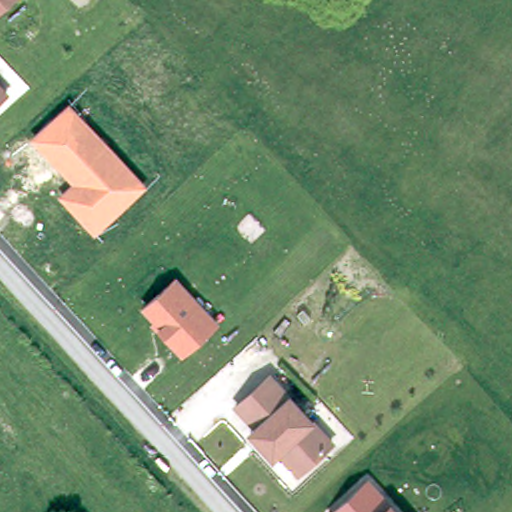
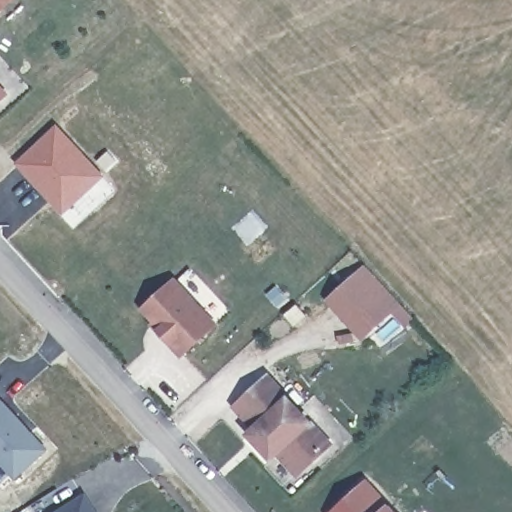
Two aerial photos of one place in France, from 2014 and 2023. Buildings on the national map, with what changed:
unchanged [(0,10),(0,0),(12,0),(0,10)]
unchanged [(0,105),(0,80),(13,94),(0,105)]
demolished [(144,183),(96,231),(61,196),(71,183),(33,137),(70,101),(144,183)]
new [(63,214),(15,161),(58,122),(106,175),(63,214)]
new [(364,339),(327,298),(366,263),(416,319),(407,326),(394,312),(364,339)]
unchanged [(221,321),(183,355),(177,346),(172,349),(156,329),(158,327),(143,305),(178,274),(221,321)]
unchanged [(290,394),(314,422),(336,442),(299,476),(280,455),(274,460),(248,431),(254,426),(233,403),(271,370),(290,394)]
new [(3,488),(0,485),(0,396),(49,448),(3,488)]
unchanged [(399,512),(329,512),(369,474),(391,502),(399,512)]
new [(52,512),(88,491),(101,512),(52,512)]

